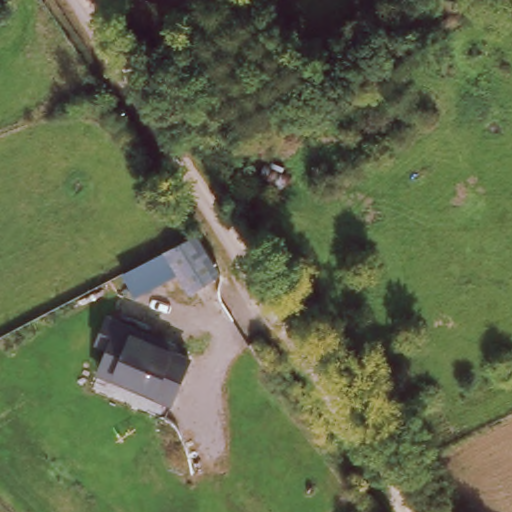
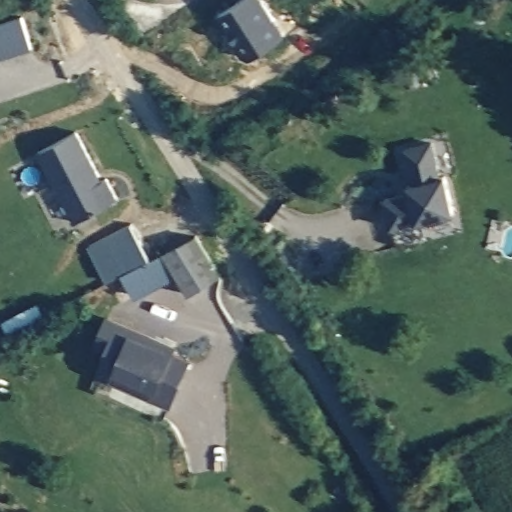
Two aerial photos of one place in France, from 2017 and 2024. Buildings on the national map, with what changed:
new [(238,0),(263,0),(286,34),(253,58),(243,53),(219,12),(238,0)]
new [(33,49),(0,60),(0,27),(23,20),(33,49)]
new [(102,182),(106,179),(118,200),(76,222),(39,154),(75,134),(102,182)]
new [(433,143),(442,176),(446,175),(456,212),(423,220),(428,239),(398,246),(387,199),(412,193),(411,185),(416,183),(407,149),(433,143)]
new [(123,273),(106,282),(88,244),(131,222),(151,259),(123,273)]
new [(195,236),(219,275),(190,293),(177,273),(135,295),(123,273),(195,236)]
unchanged [(96,373),(105,353),(91,348),(106,314),(176,342),(173,349),(193,357),(171,405),(96,373)]

